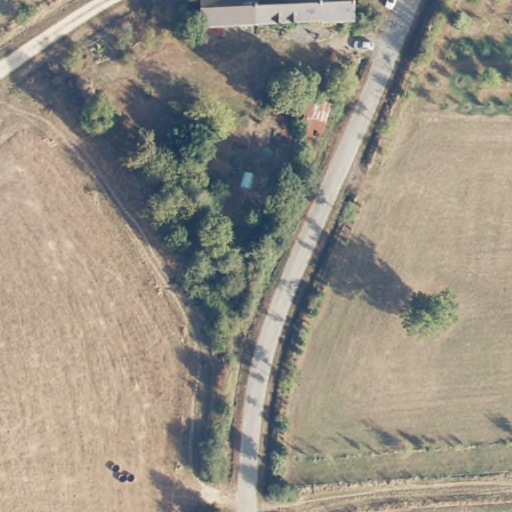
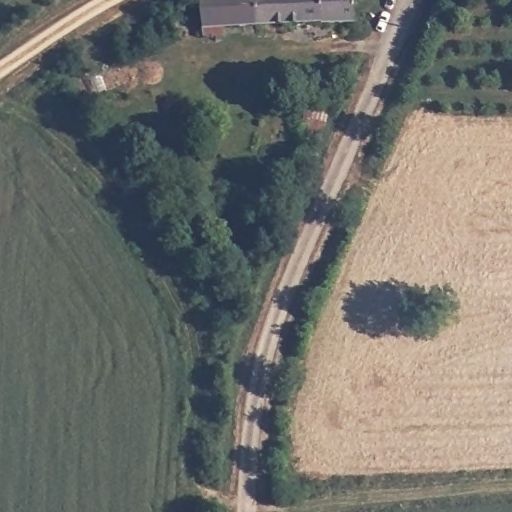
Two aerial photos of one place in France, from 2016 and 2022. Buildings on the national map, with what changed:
unchanged [(359,17),(353,17),(327,21),(326,19),(226,31),(227,41),(207,43),(205,34),(201,0),(357,0),(357,1),(359,17)]
unchanged [(336,102),(327,140),(302,132),(316,97),(336,102)]

